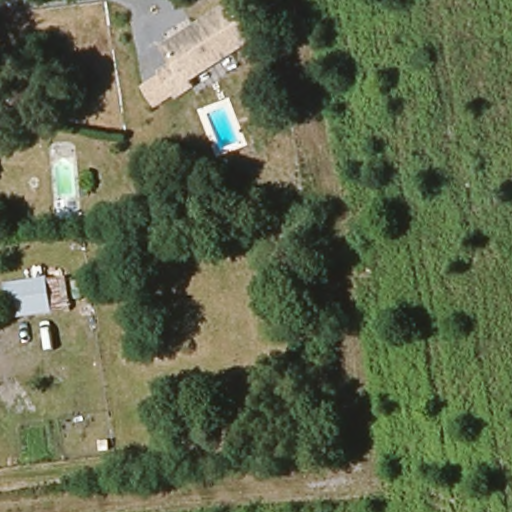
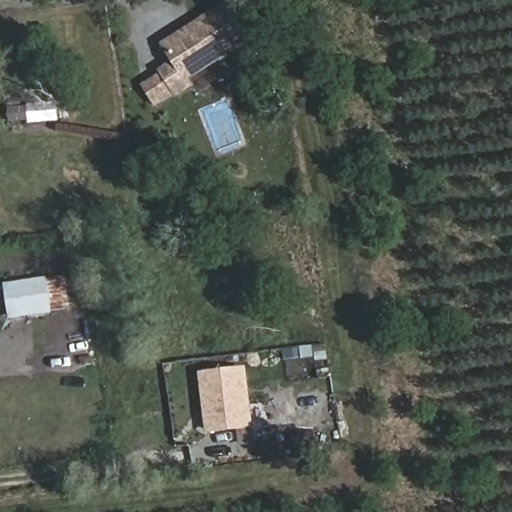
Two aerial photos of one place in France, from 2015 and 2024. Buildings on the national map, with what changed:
unchanged [(197,89),(201,95),(187,106),(171,83),(184,74),(172,58),(234,12),(257,45),(197,89)]
unchanged [(61,307),(15,315),(9,283),(56,275),(61,307)]
new [(198,371),(246,365),(254,428),(206,433),(198,371)]

